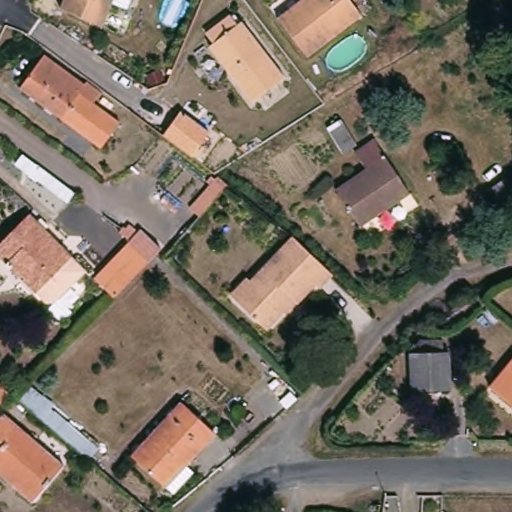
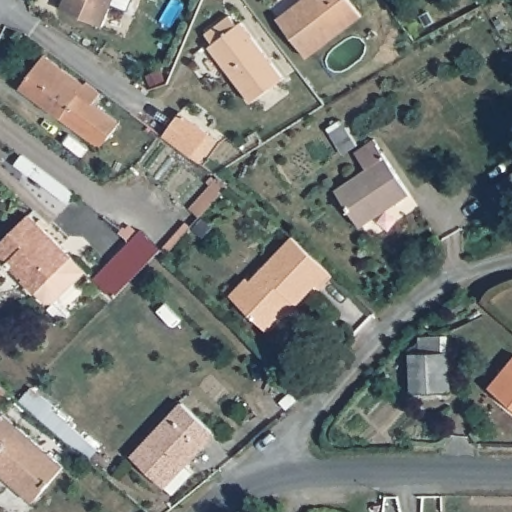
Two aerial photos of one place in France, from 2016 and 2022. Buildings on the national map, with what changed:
unchanged [(103,25),(60,8),(64,0),(113,0),(103,25)]
unchanged [(363,14),(309,56),(279,18),(302,0),(351,0),(363,14)]
unchanged [(239,24),(243,21),(285,76),(254,101),(211,46),(215,43),(207,33),(230,14),(239,24)]
unchanged [(100,93),(93,104),(101,111),(104,106),(109,109),(106,114),(119,123),(103,146),(100,149),(19,89),(44,57),(84,86),(86,83),(100,93)]
unchanged [(183,111),(210,132),(193,157),(164,137),(183,111)]
unchanged [(373,218),(359,227),(335,190),(350,180),(366,170),(354,152),(374,139),(409,193),(394,203),(379,214),(373,218)]
unchanged [(497,206),(486,190),(512,172),(512,196),(497,206)]
unchanged [(55,301),(46,301),(24,279),(25,277),(14,265),(10,268),(6,264),(7,262),(0,255),(0,243),(29,214),(72,256),(86,270),(55,301)]
unchanged [(287,313),(269,331),(245,308),(233,296),(248,280),(252,283),(294,238),(335,276),(323,289),(318,285),(299,305),(289,316),(287,313)]
unchanged [(114,298),(94,279),(129,243),(140,253),(145,247),(155,255),(149,262),(114,298)]
unchanged [(449,393),(413,396),(411,355),(418,346),(441,345),(442,357),(447,357),(449,393)]
unchanged [(490,387),(501,374),(512,361),(512,406),(490,387)]
unchanged [(0,408),(0,381),(14,392),(0,408)]
unchanged [(36,387),(59,406),(56,408),(103,449),(93,460),(91,459),(79,447),(24,400),(36,387)]
unchanged [(174,494),(165,486),(131,456),(182,402),(214,433),(185,465),(194,473),(174,494)]
unchanged [(38,502),(0,469),(0,424),(8,414),(69,466),(38,502)]

